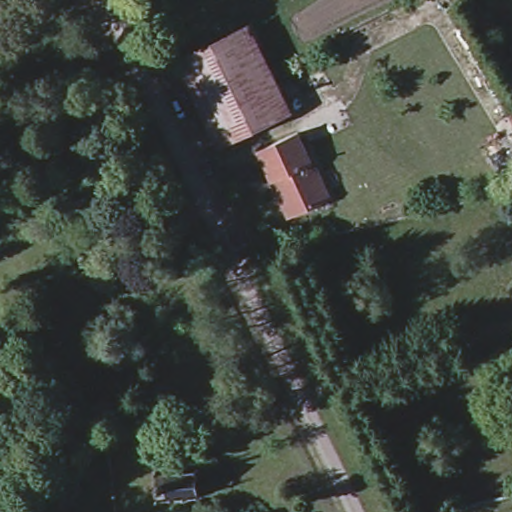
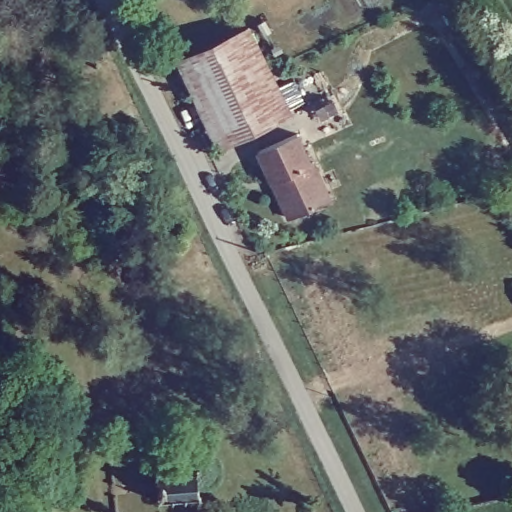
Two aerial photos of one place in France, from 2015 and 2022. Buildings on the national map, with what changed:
unchanged [(269,69),(201,102),(180,61),(250,27),(269,69)]
unchanged [(287,108),(220,141),(201,102),(269,69),(287,108)]
unchanged [(258,153),(297,135),(310,164),(312,163),(329,199),(288,218),(279,197),(272,182),(258,153)]
unchanged [(204,497),(158,502),(155,470),(201,465),(204,497)]

